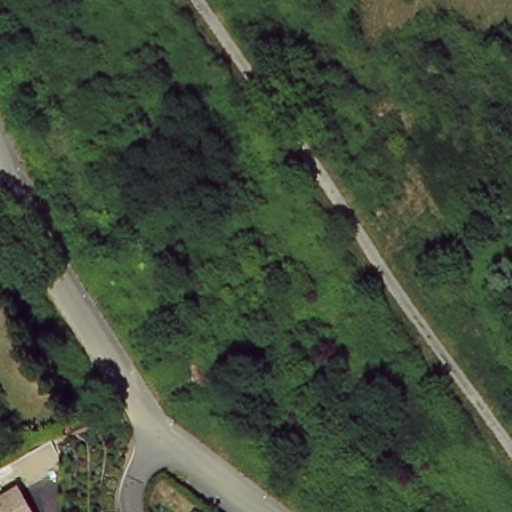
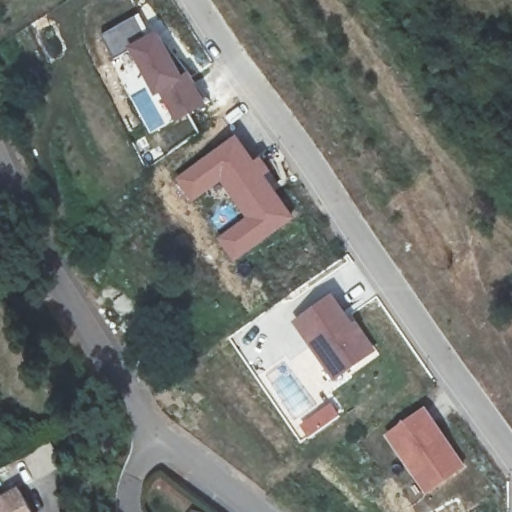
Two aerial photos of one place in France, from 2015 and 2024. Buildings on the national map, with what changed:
new [(143,14),(152,35),(162,31),(185,75),(190,71),(208,105),(177,121),(163,94),(157,96),(133,50),(115,60),(101,35),(143,14)]
new [(237,133),(257,160),(262,155),(273,171),(268,175),(297,216),(234,261),(217,237),(245,216),(220,181),(192,200),(175,176),(237,133)]
new [(333,293),(355,323),(357,322),(379,351),(335,382),(293,323),(333,293)]
new [(427,406),(468,466),(427,495),(386,435),(427,406)]
unchanged [(0,502),(26,489),(38,512),(0,512),(0,502)]

